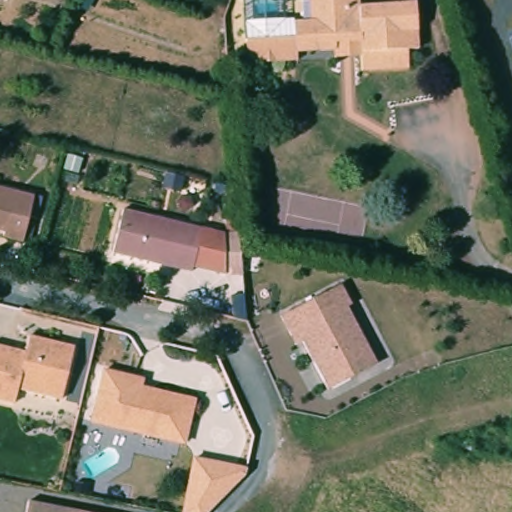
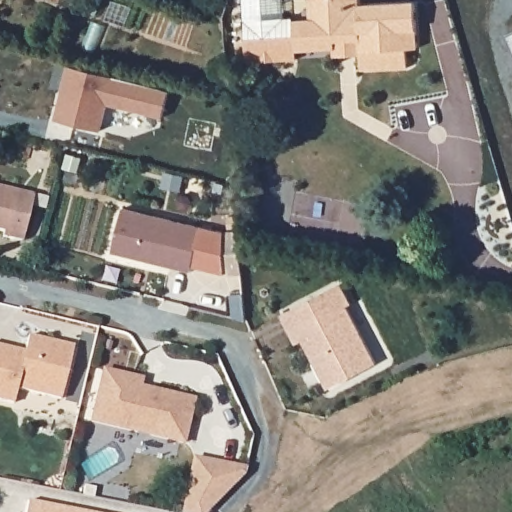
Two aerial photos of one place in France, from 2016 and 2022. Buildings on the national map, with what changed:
unchanged [(300,16),(300,0),(360,0),(360,4),(416,0),(418,50),(408,50),(409,69),(360,73),(359,56),(333,58),(332,49),(296,50),(297,60),(245,64),(242,0),(283,0),(284,18),(300,16)]
unchanged [(500,36),(512,32),(512,62),(500,36)]
new [(64,69),(165,94),(158,120),(104,106),(98,131),(74,125),(70,144),(47,139),(52,120),(64,69)]
unchanged [(22,239),(2,233),(4,225),(0,223),(0,184),(33,192),(22,239)]
unchanged [(111,255),(122,213),(200,233),(189,274),(171,270),(152,265),(111,255)]
unchanged [(122,213),(226,234),(237,233),(241,275),(225,275),(191,266),(200,233),(122,213)]
unchanged [(285,317),(345,287),(355,306),(352,307),(383,368),(334,393),(309,344),(300,348),(296,339),(285,317)]
unchanged [(16,401),(0,398),(0,345),(26,351),(29,336),(72,344),(63,394),(20,385),(16,401)]
unchanged [(107,366),(144,375),(143,382),(197,395),(186,439),(95,417),(107,366)]
unchanged [(247,468),(245,477),(210,512),(179,512),(191,458),(247,468)]
unchanged [(78,512),(24,512),(25,502),(78,512)]

